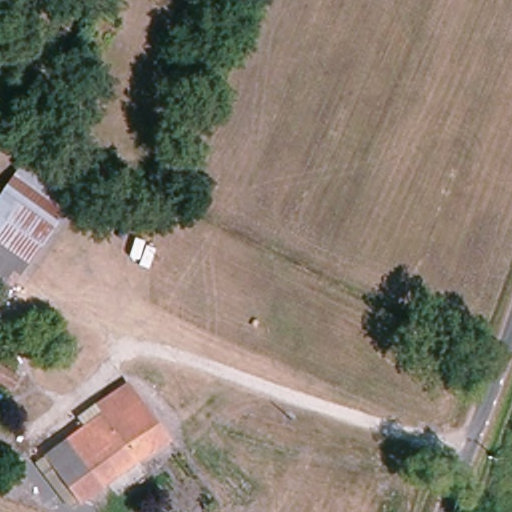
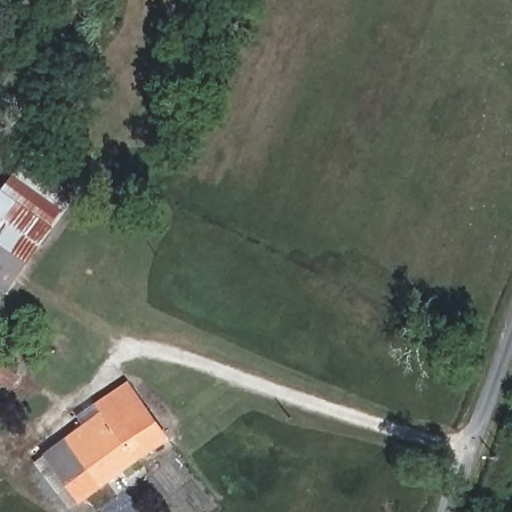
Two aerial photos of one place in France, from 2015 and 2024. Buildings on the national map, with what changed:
unchanged [(0,289),(0,187),(0,188),(25,159),(77,192),(6,294),(0,289)]
unchanged [(19,376),(12,387),(0,378),(0,363),(19,376)]
unchanged [(165,442),(124,468),(83,500),(49,455),(96,420),(92,409),(126,390),(165,442)]

